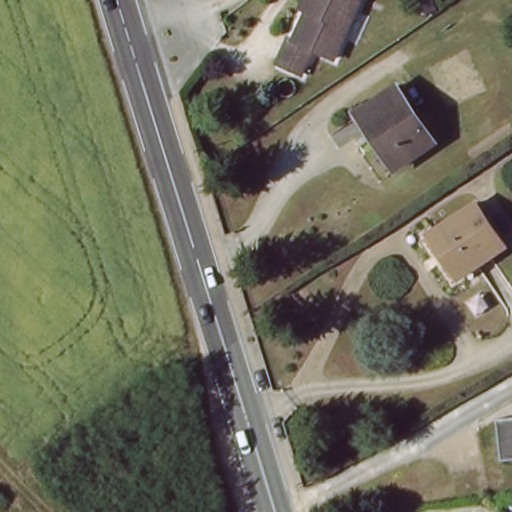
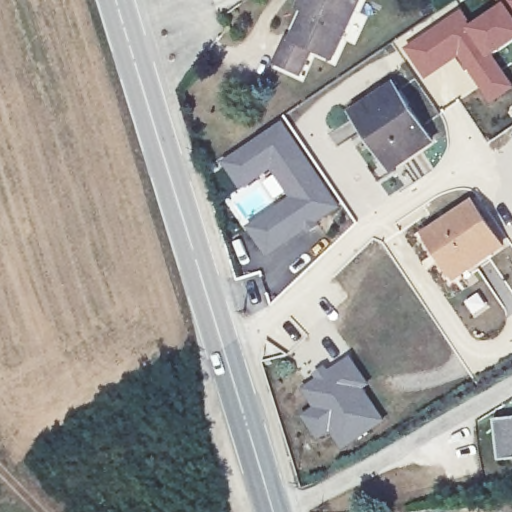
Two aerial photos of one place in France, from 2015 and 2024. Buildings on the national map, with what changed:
unchanged [(326,61),(307,53),(295,78),(263,62),(274,36),(283,40),(296,12),(289,9),(294,0),(311,0),(354,0),(326,61)]
new [(505,6),(500,0),(512,0),(512,42),(494,55),(512,81),(512,90),(492,105),(460,57),(428,79),(408,49),(463,14),(474,29),(505,6)]
unchanged [(426,141),(387,166),(352,110),(390,85),(426,141)]
new [(285,115),(344,205),(267,258),(246,229),(288,196),(270,171),(240,190),(222,162),(285,115)]
unchanged [(421,234),(471,200),(501,247),(448,282),(421,234)]
new [(313,406),(300,388),(350,353),(371,385),(366,388),(386,420),(342,450),(330,433),(317,440),(300,416),(313,406)]
unchanged [(496,427),(512,425),(512,464),(499,465),(496,427)]

